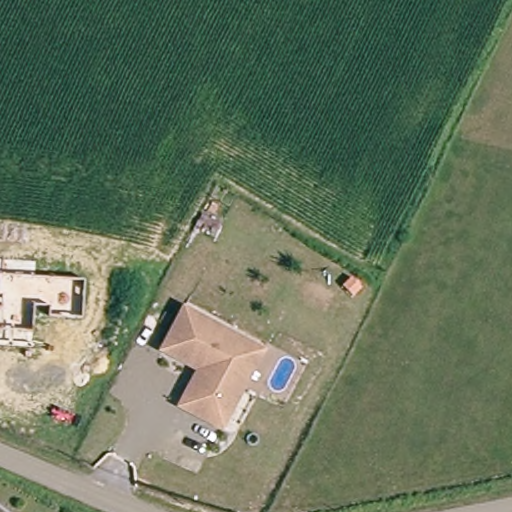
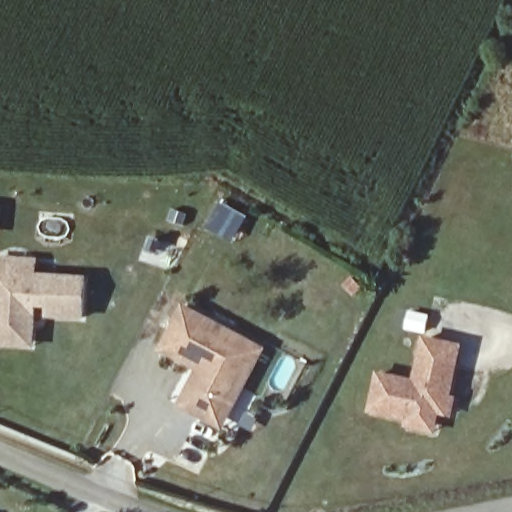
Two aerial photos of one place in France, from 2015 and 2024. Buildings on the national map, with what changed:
new [(0,258),(40,260),(39,275),(89,278),(86,321),(47,320),(48,310),(37,308),(35,350),(0,347),(0,258)]
unchanged [(215,423),(185,408),(199,382),(208,378),(210,374),(166,351),(187,310),(267,351),(248,390),(228,430),(215,423)]
new [(453,397),(458,398),(453,419),(441,416),(437,432),(406,427),(408,418),(370,412),(378,374),(415,382),(425,339),(463,347),(453,397)]

